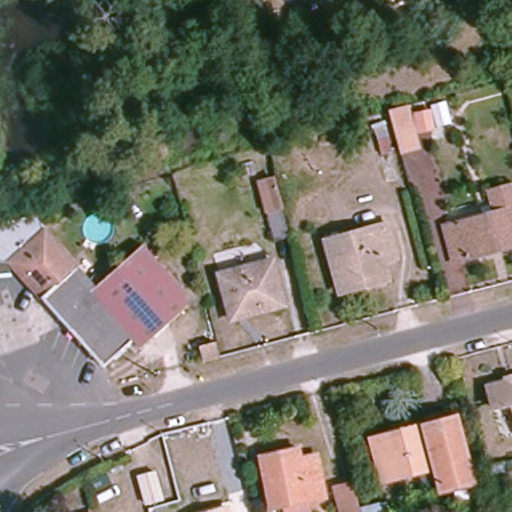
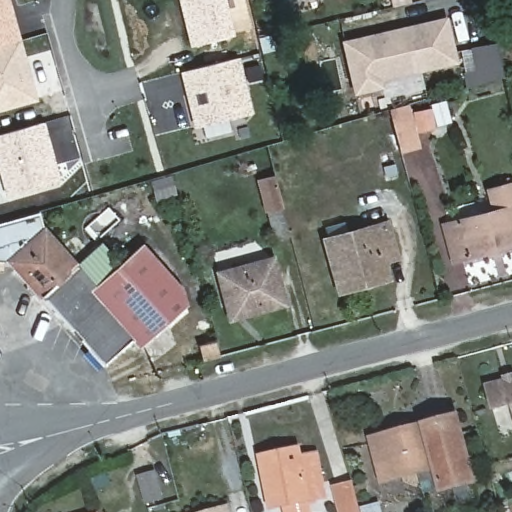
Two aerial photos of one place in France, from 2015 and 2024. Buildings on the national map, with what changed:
new [(18,41),(0,46),(0,0),(6,0),(18,41)]
new [(233,37),(194,46),(183,0),(224,0),(233,37)]
new [(397,32),(445,22),(454,63),(378,80),(380,88),(355,94),(344,45),(389,35),(397,32)]
new [(18,41),(34,99),(0,108),(0,46),(18,41)]
new [(238,62),(250,115),(196,128),(184,75),(238,62)]
unchanged [(416,108),(429,106),(430,111),(433,111),(436,125),(433,126),(434,133),(422,136),(416,108)]
unchanged [(408,111),(418,150),(403,154),(393,116),(408,111)]
new [(58,186),(0,202),(0,135),(40,123),(58,186)]
unchanged [(377,145),(380,144),(379,140),(390,138),(394,154),(379,157),(377,145)]
new [(171,177),(176,196),(156,201),(151,183),(171,177)]
unchanged [(262,184),(275,180),(284,213),(282,214),(288,240),(277,243),(262,184)]
unchanged [(487,192),(512,184),(512,250),(458,263),(444,228),(489,215),(487,192)]
unchanged [(41,215),(43,229),(95,289),(145,247),(183,290),(188,310),(141,351),(133,342),(103,367),(11,263),(0,263),(0,227),(41,215)]
unchanged [(370,286),(340,295),(326,244),(389,226),(397,260),(383,264),(388,281),(370,286)]
unchanged [(228,302),(220,272),(276,257),(288,303),(263,310),(232,318),(228,302)]
unchanged [(203,360),(198,340),(218,336),(219,341),(223,355),(207,359),(203,360)]
unchanged [(489,389),(512,383),(512,405),(495,410),(489,389)]
unchanged [(458,418),(473,480),(443,488),(437,465),(384,479),(374,440),(458,418)]
unchanged [(303,457),(320,454),(327,495),(309,499),(311,512),(289,512),(287,503),(271,506),(262,455),(301,448),(303,457)]
unchanged [(156,471),(163,497),(147,501),(140,475),(156,471)]
unchanged [(362,512),(341,512),(335,490),(350,485),(362,512)]
unchanged [(205,512),(229,505),(232,512),(205,512)]
unchanged [(380,512),(376,512),(380,511),(380,512)]

